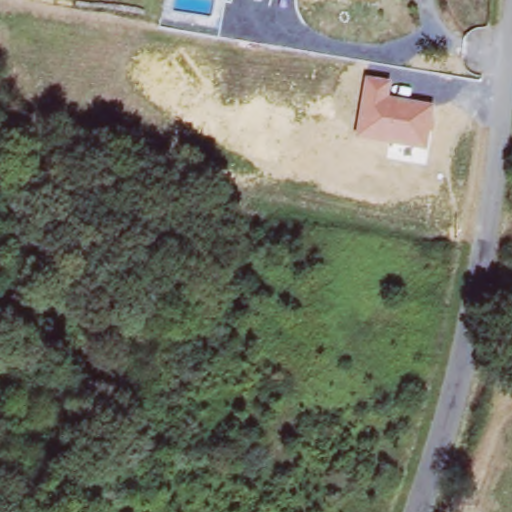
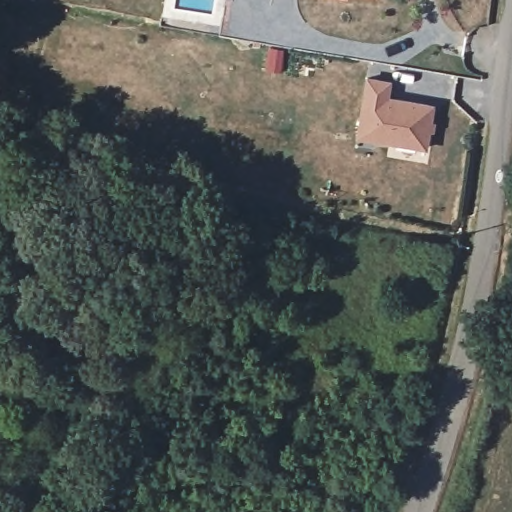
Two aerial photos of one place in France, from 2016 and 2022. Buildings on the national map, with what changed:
unchanged [(364,74),(391,79),(389,97),(433,104),(425,151),(354,137),(364,74)]

